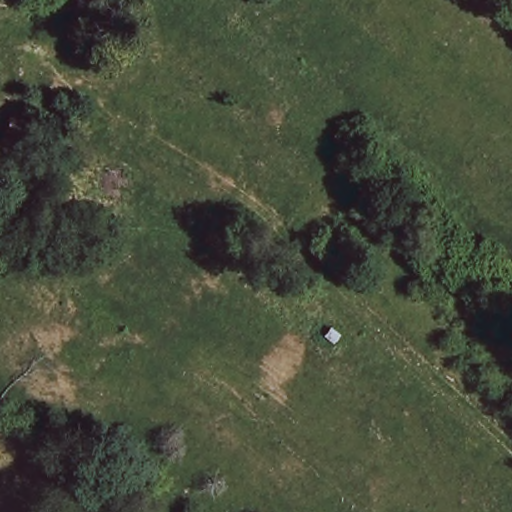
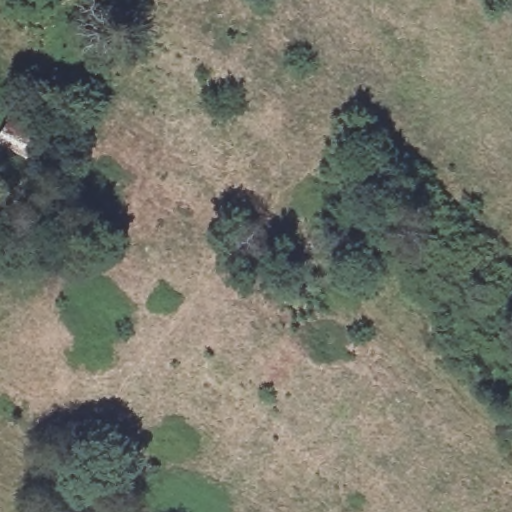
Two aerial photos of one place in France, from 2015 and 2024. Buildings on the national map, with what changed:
unchanged [(7,139),(0,135),(0,108),(19,119),(7,139)]

